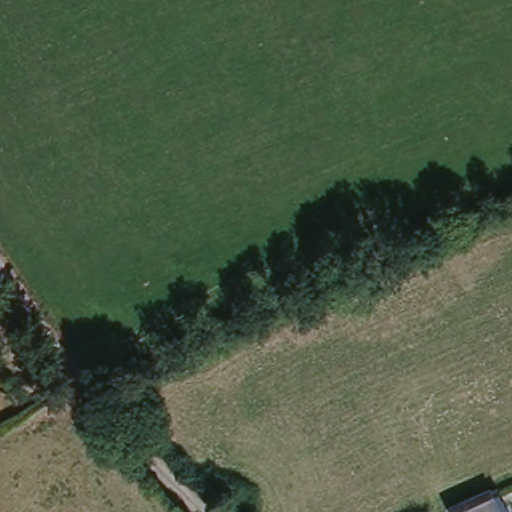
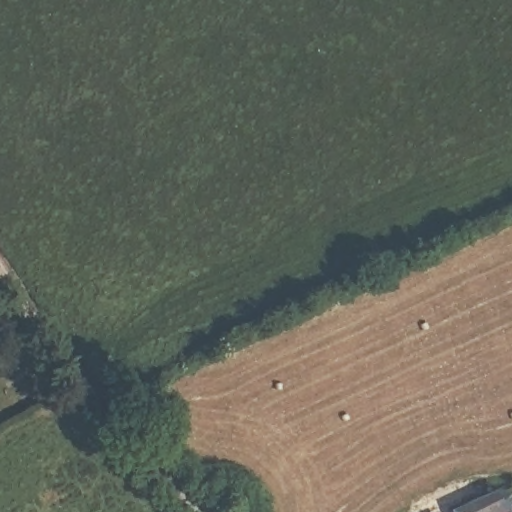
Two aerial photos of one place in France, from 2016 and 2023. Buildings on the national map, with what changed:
unchanged [(485,512),(445,512),(441,505),(493,486),(496,508),(485,512)]

